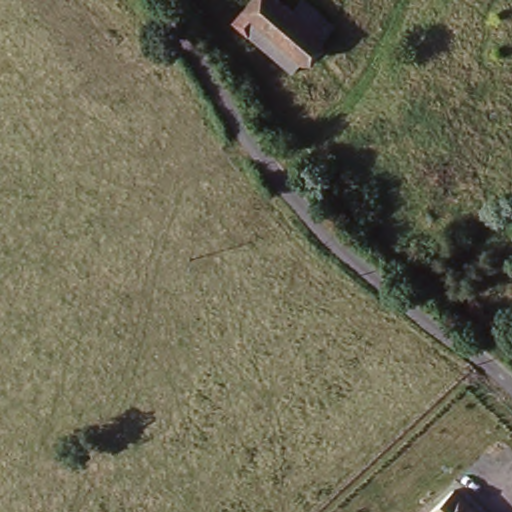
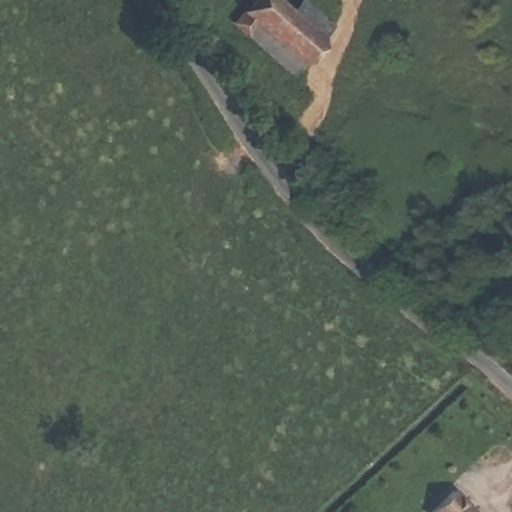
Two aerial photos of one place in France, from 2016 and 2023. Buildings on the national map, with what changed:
unchanged [(229,26),(251,0),(272,0),(289,14),(297,1),(329,26),(290,76),(229,26)]
unchanged [(481,512),(431,512),(457,486),(481,512)]

